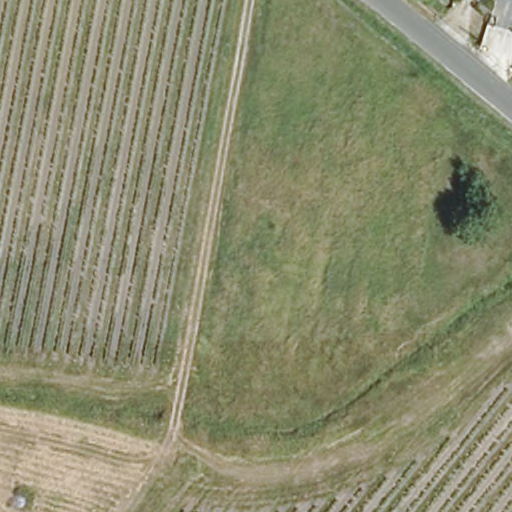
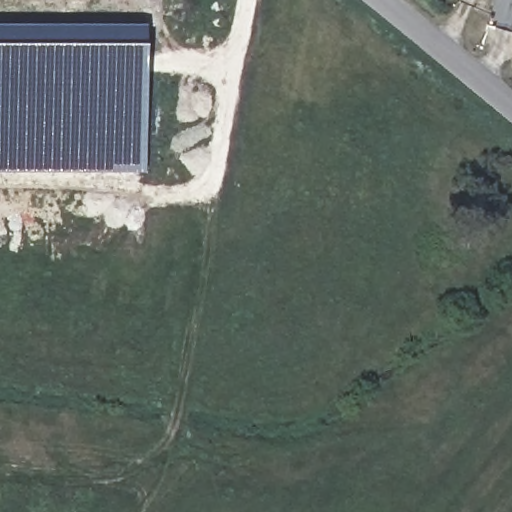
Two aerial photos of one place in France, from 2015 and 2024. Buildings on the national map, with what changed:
new [(146,171),(0,172),(0,27),(145,27),(146,171)]

